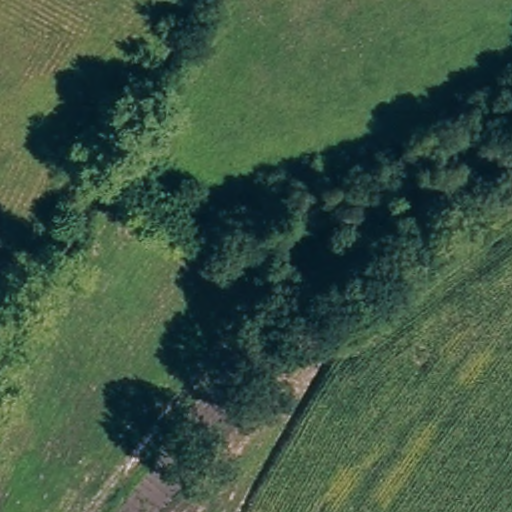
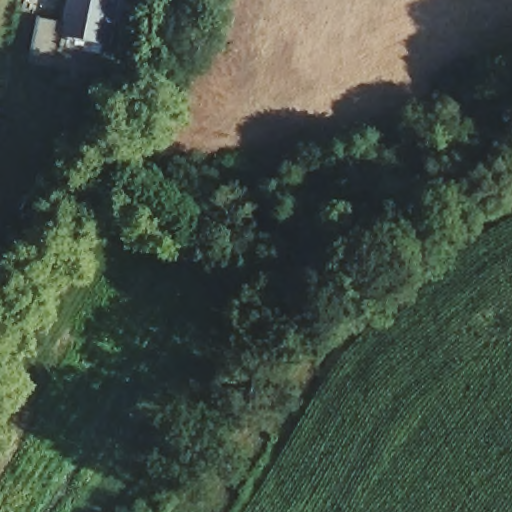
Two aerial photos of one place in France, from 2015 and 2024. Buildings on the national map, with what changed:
new [(67,25),(71,0),(120,0),(111,47),(106,80),(32,66),(40,20),(67,25)]

